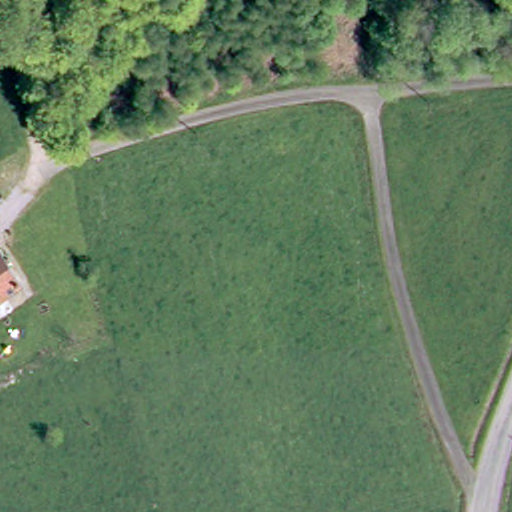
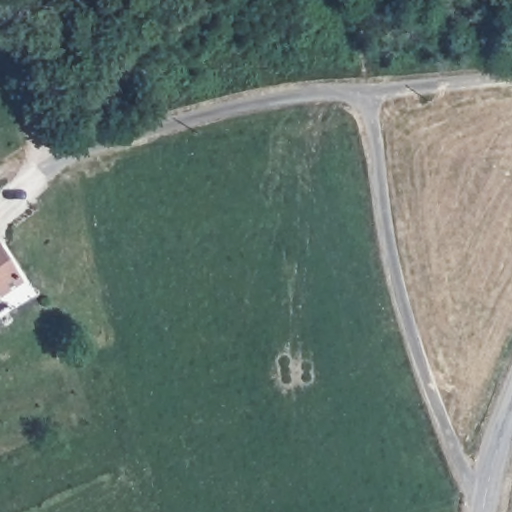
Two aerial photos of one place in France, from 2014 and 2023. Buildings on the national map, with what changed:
unchanged [(0,286),(0,247),(17,275),(0,286)]

